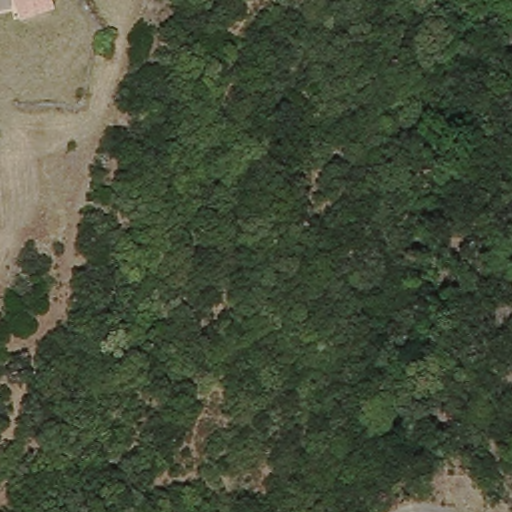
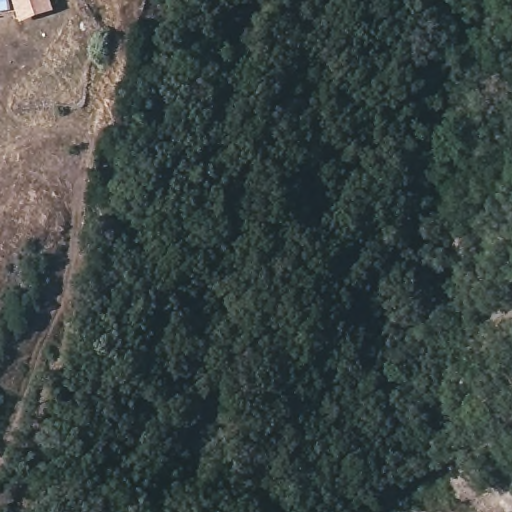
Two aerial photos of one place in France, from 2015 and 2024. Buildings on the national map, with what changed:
unchanged [(13,0),(55,0),(57,5),(19,17),(13,0)]
unchanged [(113,272),(106,299),(81,291),(88,265),(113,272)]

